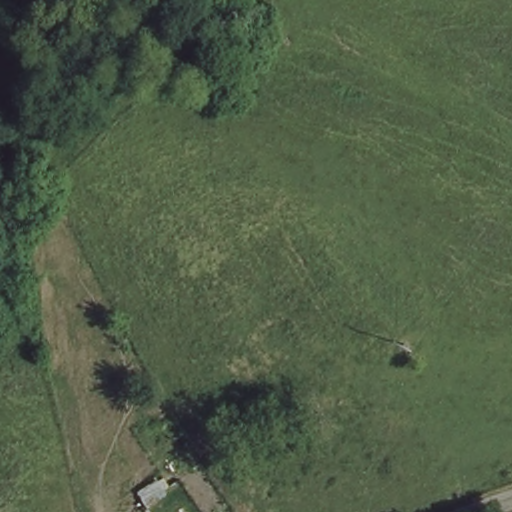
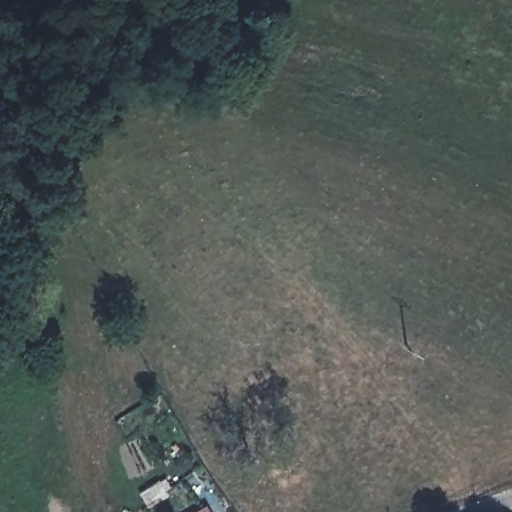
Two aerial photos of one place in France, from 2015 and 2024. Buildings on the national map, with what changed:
[]

